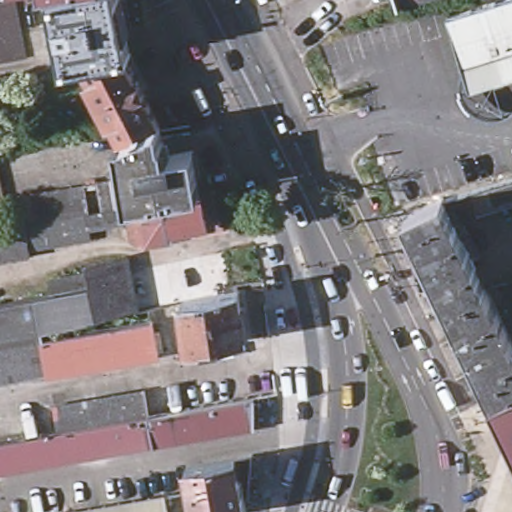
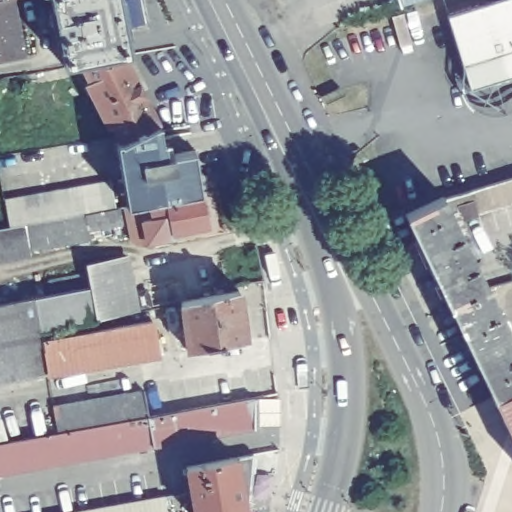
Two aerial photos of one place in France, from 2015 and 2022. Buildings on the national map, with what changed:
unchanged [(28,56),(0,61),(0,0),(20,0),(28,56)]
unchanged [(136,51),(164,117),(170,150),(200,149),(214,229),(176,233),(178,240),(146,244),(120,130),(83,59),(64,60),(60,0),(126,0),(136,51)]
unchanged [(404,7),(402,0),(427,0),(404,7)]
unchanged [(498,0),(512,0),(512,78),(473,87),(452,15),(498,0)]
unchanged [(506,209),(460,219),(449,195),(497,182),(512,178),(512,207),(506,209)]
unchanged [(2,199),(118,180),(131,228),(93,234),(94,240),(34,246),(38,257),(0,264),(0,229),(10,227),(2,199)]
unchanged [(407,215),(449,195),(460,219),(509,318),(512,324),(512,414),(407,215)]
unchanged [(89,258),(133,251),(141,319),(156,316),(161,354),(0,382),(0,301),(91,283),(89,258)]
unchanged [(183,298),(243,290),(251,340),(195,350),(183,298)]
unchanged [(509,318),(512,316),(512,324),(509,318)]
unchanged [(55,403),(146,385),(155,411),(256,393),(261,426),(0,475),(0,438),(61,426),(55,403)]
unchanged [(244,457),(251,510),(240,512),(199,512),(188,466),(244,457)]
unchanged [(67,512),(168,495),(171,512),(67,512)]

